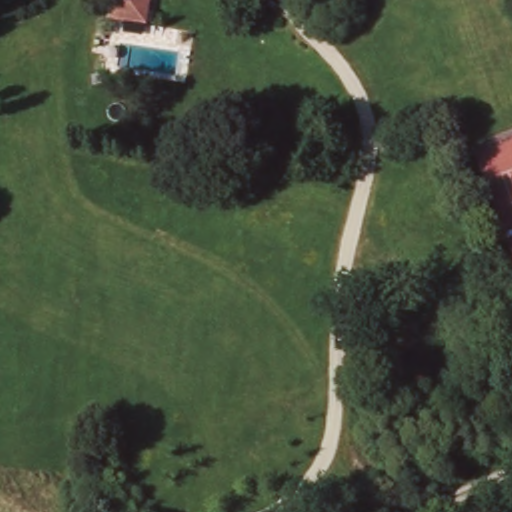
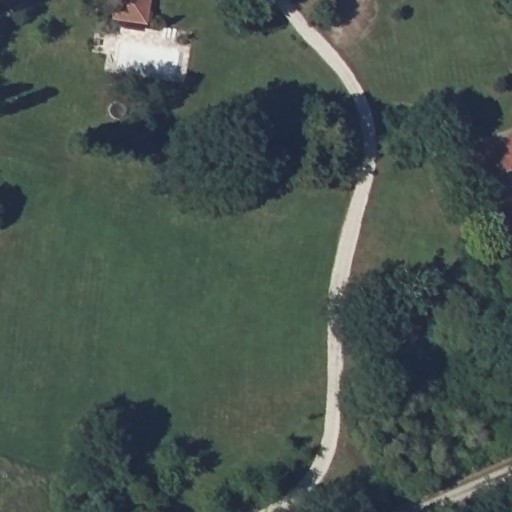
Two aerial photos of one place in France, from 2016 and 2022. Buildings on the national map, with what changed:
unchanged [(121,0),(149,0),(148,4),(121,0)]

